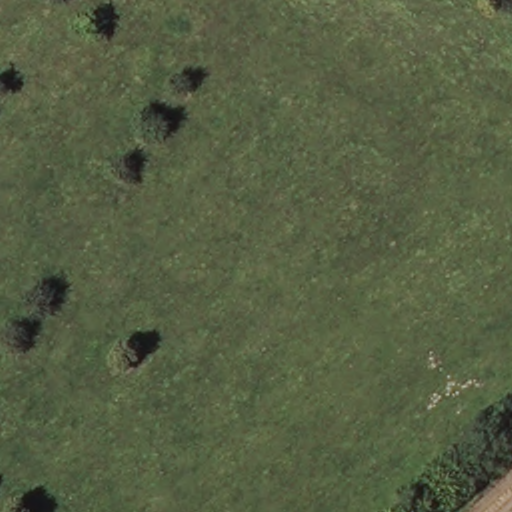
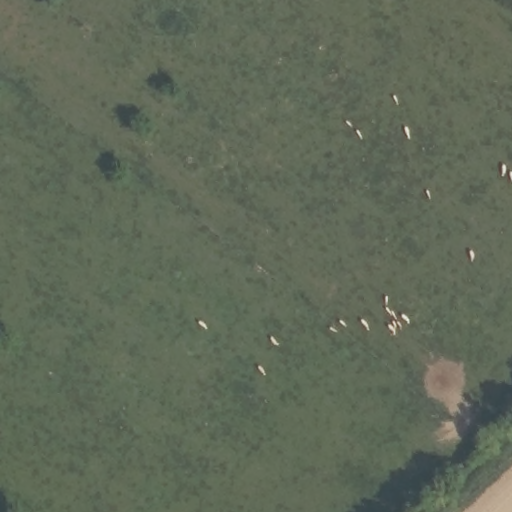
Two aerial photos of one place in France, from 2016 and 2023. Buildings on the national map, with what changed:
[]

